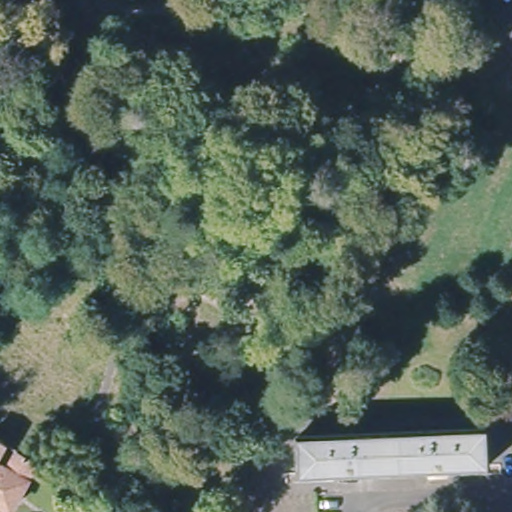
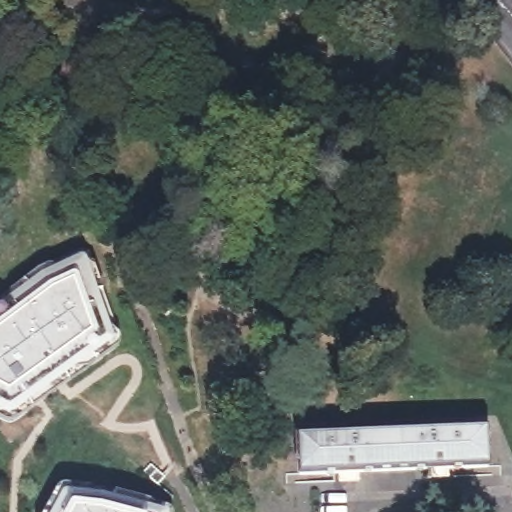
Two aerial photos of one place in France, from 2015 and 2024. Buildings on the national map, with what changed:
new [(84,263),(113,337),(10,412),(0,407),(0,314),(45,280),(84,263)]
unchanged [(297,437),(485,430),(487,466),(299,475),(297,437)]
demolished [(0,507),(0,438),(9,443),(37,460),(10,512),(0,507)]
new [(67,497),(85,499),(95,512),(58,512),(67,497)]
new [(100,501),(116,505),(144,512),(95,512),(85,499),(100,501)]

